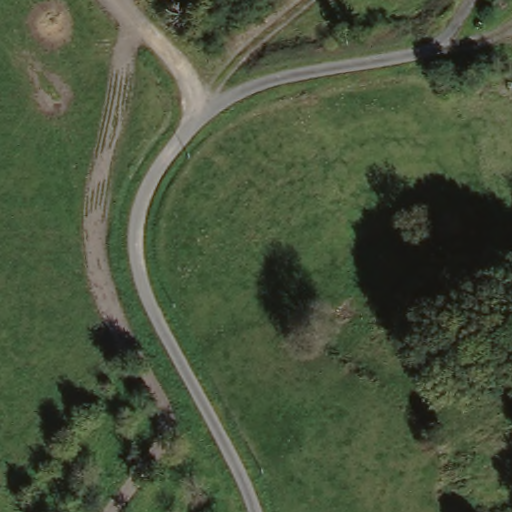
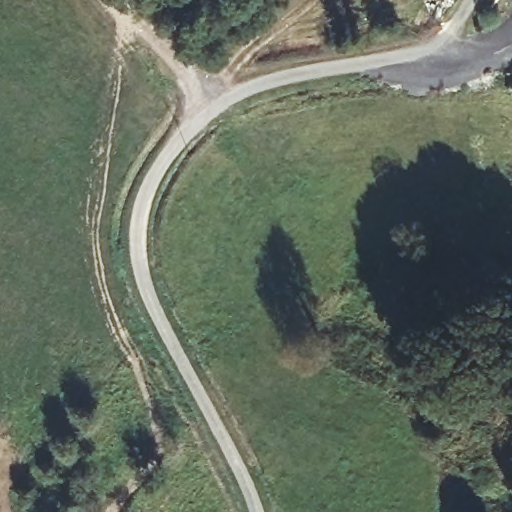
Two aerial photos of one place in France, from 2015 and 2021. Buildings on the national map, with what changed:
unchanged [(490,62),(488,55),(498,52),(500,59),(490,62)]

